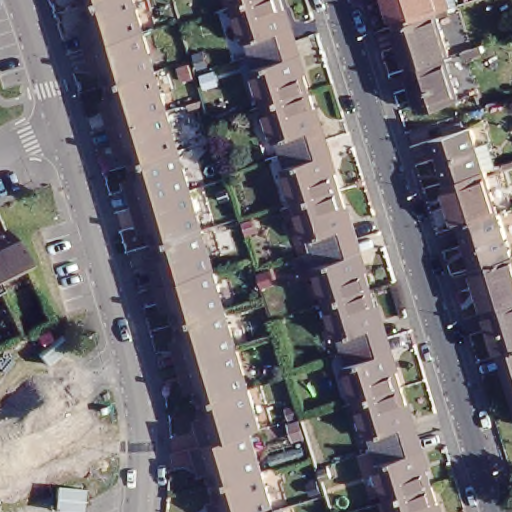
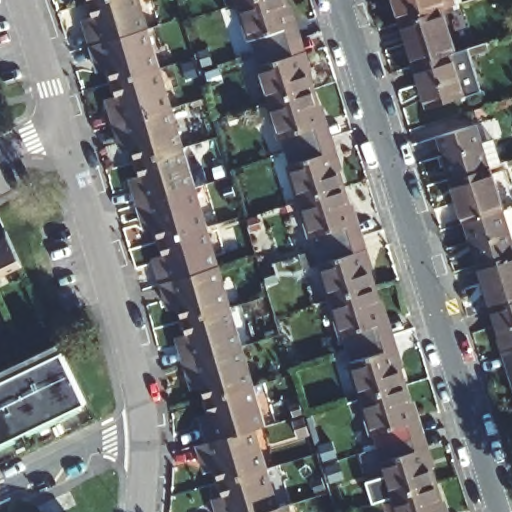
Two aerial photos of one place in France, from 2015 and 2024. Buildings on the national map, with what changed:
unchanged [(101,13),(97,0),(145,0),(152,25),(97,42),(92,25),(90,15),(101,13)]
unchanged [(288,34),(246,48),(242,34),(238,35),(227,0),(277,0),(288,34)]
unchanged [(436,5),(396,18),(391,0),(454,0),(436,5)]
unchanged [(436,5),(450,48),(445,50),(410,62),(396,18),(436,5)]
unchanged [(101,57),(97,42),(152,25),(165,65),(118,80),(113,64),(105,66),(101,57)]
unchanged [(303,83),(258,97),(247,63),(250,62),(246,48),(288,34),(303,83)]
unchanged [(445,50),(459,91),(423,102),(410,62),(445,50)]
unchanged [(122,94),(118,80),(165,65),(176,107),(121,124),(116,107),(113,97),(122,94)]
unchanged [(303,83),(320,135),(280,147),(276,136),(271,137),(258,97),(303,83)]
unchanged [(125,137),(121,124),(176,107),(188,146),(142,161),(138,145),(128,148),(125,137)]
unchanged [(433,133),(468,122),(473,141),(487,137),(495,162),(483,165),(446,177),(433,133)]
unchanged [(291,197),(280,161),(284,160),(280,147),(320,135),(335,183),(291,197)]
unchanged [(147,175),(142,161),(188,146),(200,187),(145,205),(140,189),(138,178),(147,175)]
unchanged [(483,165),(495,208),(458,219),(446,177),(483,165)]
unchanged [(305,229),(302,230),(291,197),(335,183),(350,231),(310,244),(305,229)]
unchanged [(150,221),(145,205),(200,187),(211,226),(165,241),(162,229),(152,232),(150,221)]
unchanged [(458,219),(495,208),(510,252),(472,264),(458,219)]
unchanged [(8,232),(20,258),(0,267),(0,228),(5,226),(8,232)]
unchanged [(170,256),(165,241),(211,226),(223,267),(168,284),(164,270),(160,259),(170,256)]
unchanged [(322,296),(311,259),(315,258),(310,244),(350,231),(366,281),(322,296)]
unchanged [(472,264),(510,252),(512,252),(512,301),(486,309),(472,264)]
unchanged [(173,300),(168,284),(223,267),(235,306),(190,321),(186,307),(176,310),(173,300)]
unchanged [(381,330),(341,342),(337,328),(332,329),(322,296),(366,281),(381,330)]
unchanged [(512,347),(500,351),(486,309),(512,301),(512,347)]
unchanged [(193,333),(190,321),(235,306),(246,346),(191,363),(186,347),(183,337),(193,333)]
unchanged [(397,379),(353,393),(342,356),(345,355),(341,342),(381,330),(397,379)]
unchanged [(196,381),(191,363),(246,346),(257,386),(213,400),(210,388),(200,391),(196,381)]
unchanged [(512,347),(512,390),(500,351),(512,347)]
new [(0,447),(0,383),(65,352),(89,403),(0,447)]
unchanged [(397,379),(413,429),(372,442),(368,428),(365,430),(353,393),(397,379)]
unchanged [(218,414),(213,400),(257,386),(269,426),(263,428),(215,443),(210,427),(208,418),(218,414)]
unchanged [(210,463),(205,446),(215,443),(263,428),(273,468),(227,483),(223,471),(213,474),(210,463)]
unchanged [(385,493),(375,460),(377,459),(372,442),(413,429),(429,479),(385,493)]
unchanged [(227,483),(273,468),(285,508),(274,512),(224,512),(224,511),(221,501),(231,497),(227,483)]
unchanged [(429,479),(439,512),(391,512),(385,493),(429,479)]
unchanged [(293,506),(295,512),(274,512),(285,508),(293,506)]

